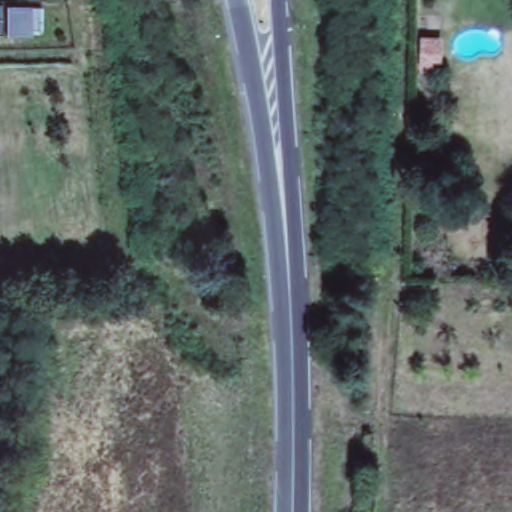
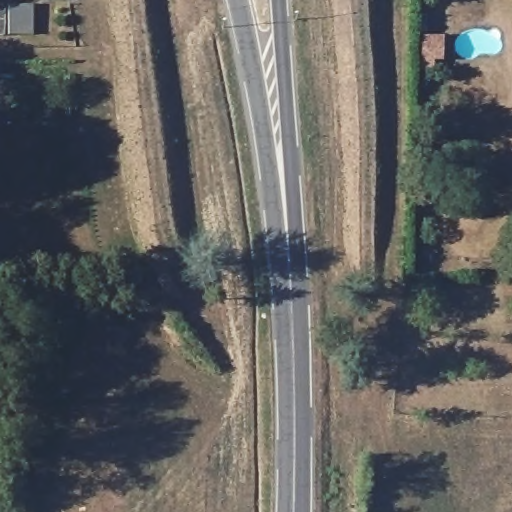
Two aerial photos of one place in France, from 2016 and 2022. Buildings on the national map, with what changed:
unchanged [(61,35),(1,36),(1,8),(58,7),(61,35)]

